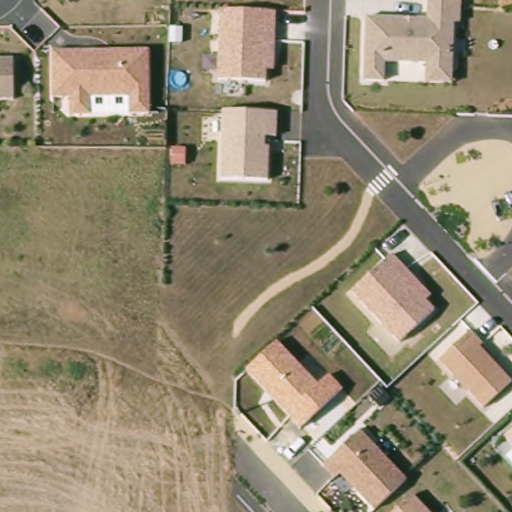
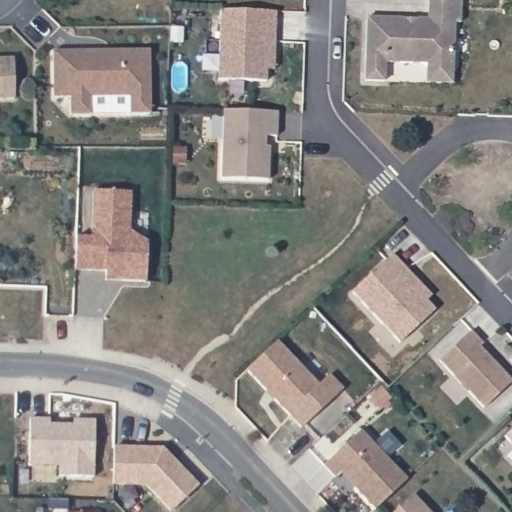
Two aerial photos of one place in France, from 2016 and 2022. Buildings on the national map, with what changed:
unchanged [(367,18),(428,20),(429,0),(462,0),(461,23),(455,23),(452,83),(426,83),(426,65),(386,63),(384,81),(364,83),(367,18)]
unchanged [(220,9),(275,11),(274,68),(267,69),(267,79),(219,77),(220,9)]
unchanged [(51,49),(150,49),(151,111),(69,113),(69,96),(53,95),(51,49)]
unchanged [(13,61),(14,100),(0,100),(0,61),(13,60),(13,61)]
unchanged [(223,109),(278,111),(277,138),(264,138),(265,146),(270,147),(269,177),(222,178),(223,109)]
new [(105,270),(74,269),(76,236),(91,237),(93,190),(131,192),(129,230),(147,242),(145,281),(123,280),(105,280),(105,275),(105,270)]
unchanged [(352,289),(393,252),(432,296),(429,299),(436,308),(399,341),(352,289)]
unchanged [(439,358),(472,329),(484,342),(481,346),(512,379),(512,380),(483,406),(439,358)]
unchanged [(317,382),(329,372),(344,389),(300,430),(244,371),(278,339),(317,382)]
new [(30,418),(49,419),(49,424),(74,424),(74,419),(94,420),(94,476),(59,476),(59,465),(29,465),(30,418)]
unchanged [(504,434),(512,428),(512,442),(504,434)]
unchanged [(341,473),(335,477),(323,463),(362,429),(407,478),(374,509),(341,473)]
new [(162,448),(166,453),(172,458),(198,486),(171,511),(146,485),(113,484),(114,447),(162,448)]
unchanged [(431,512),(394,512),(414,493),(431,512)]

